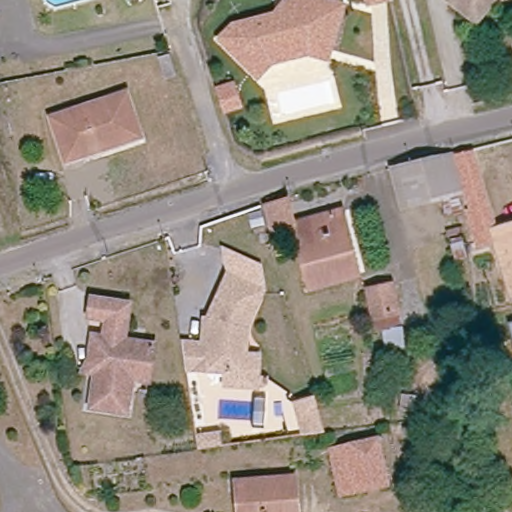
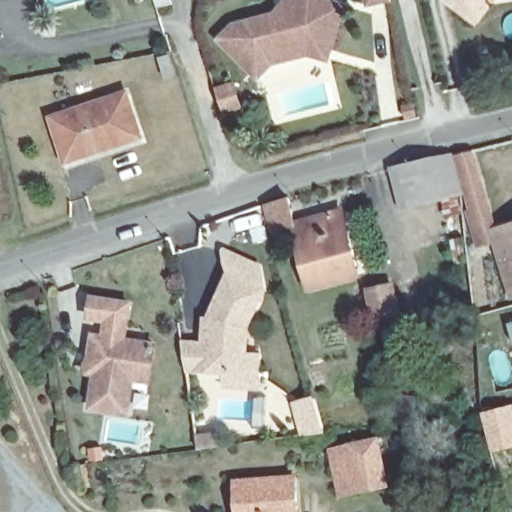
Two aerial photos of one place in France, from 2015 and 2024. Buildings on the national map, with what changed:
unchanged [(247,67),(218,38),(231,25),(276,14),(283,1),(289,0),(321,0),(343,6),(330,51),(327,60),(308,54),(272,63),(257,78),(247,67)]
unchanged [(367,0),(389,0),(368,5),(367,0)]
unchanged [(445,0),(484,0),(469,18),(445,0)]
unchanged [(239,106),(227,110),(220,89),(232,85),(239,106)]
unchanged [(125,93),(140,137),(65,162),(50,118),(125,93)]
unchanged [(459,191),(458,191),(392,208),(382,167),(448,151),(459,191)]
unchanged [(475,235),(473,225),(467,207),(470,206),(461,174),(476,170),(490,220),(483,222),(486,232),(475,235)]
unchanged [(357,274),(307,287),(290,228),(270,233),(263,204),(286,199),(293,227),(341,214),(357,274)]
unchanged [(490,226),(512,220),(512,293),(510,294),(506,280),(490,226)]
unchanged [(251,388),(216,385),(217,370),(179,367),(175,340),(201,342),(202,315),(222,273),(257,289),(241,325),(239,352),(254,353),(251,388)]
unchanged [(390,281),(391,316),(377,316),(377,307),(362,308),(361,282),(390,281)]
unchanged [(133,375),(127,410),(91,404),(94,386),(92,386),(95,368),(90,367),(94,345),(96,332),(106,334),(109,316),(91,313),(94,295),(130,301),(124,338),(155,343),(152,360),(149,378),(133,375)]
unchanged [(400,358),(383,359),(383,338),(378,338),(378,322),(393,321),(394,337),(399,337),(400,358)]
unchanged [(301,434),(293,403),(312,397),(322,431),(301,434)]
new [(481,412),(512,404),(512,447),(491,452),(481,412)]
unchanged [(378,438),(386,483),(338,492),(330,446),(378,438)]
unchanged [(293,474),(295,512),(236,512),(233,478),(293,474)]

